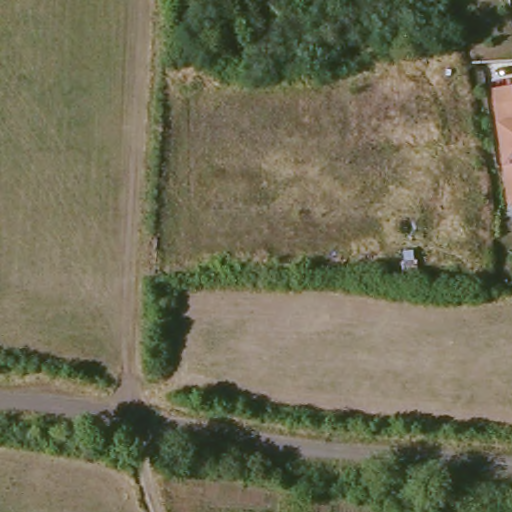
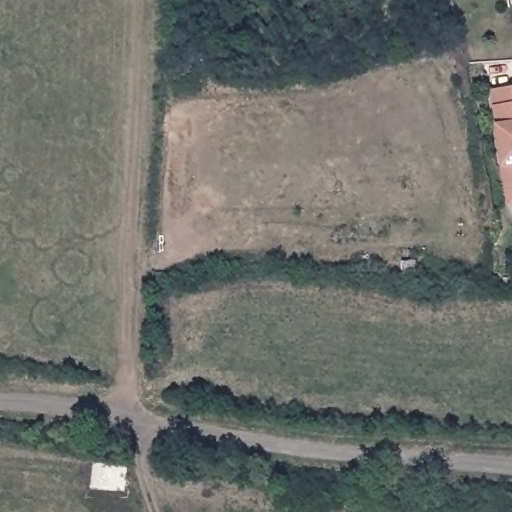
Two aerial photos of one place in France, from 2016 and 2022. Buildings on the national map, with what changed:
unchanged [(493,91),(510,89),(512,89),(512,206),(508,207),(493,91)]

